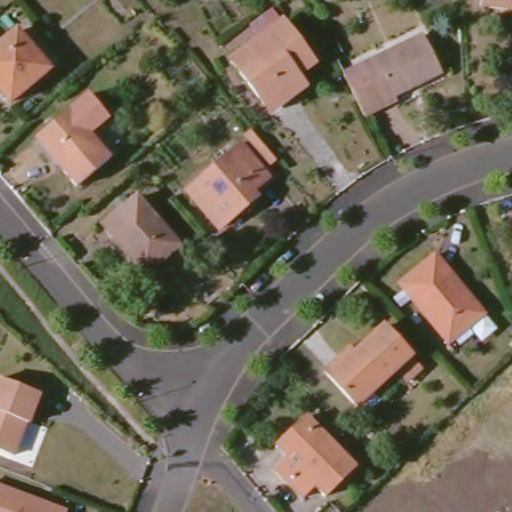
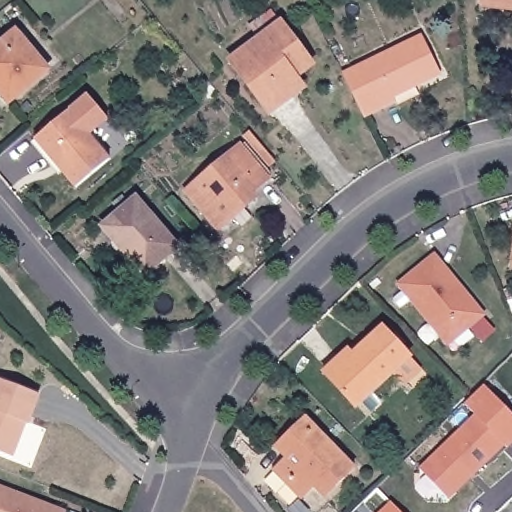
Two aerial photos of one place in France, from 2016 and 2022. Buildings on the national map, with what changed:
unchanged [(492,7),(475,5),(475,0),(512,0),(512,20),(492,17),(492,7)]
unchanged [(297,79),(292,74),(279,85),(285,92),(269,105),(234,65),(278,26),(312,66),(297,79)]
unchanged [(0,39),(9,31),(47,72),(10,105),(0,95),(0,39)]
unchanged [(392,103),(365,116),(343,73),(417,36),(435,71),(387,93),(392,103)]
unchanged [(83,96),(104,118),(86,135),(107,158),(77,187),(34,141),(65,113),(83,96)]
unchanged [(220,225),(189,189),(242,143),(269,174),(252,188),(256,193),(220,225)]
unchanged [(144,272),(103,225),(135,196),(176,243),(144,272)]
unchanged [(450,348),(397,289),(437,253),(469,288),(462,295),(484,318),(450,348)]
unchanged [(322,373),(355,340),(360,345),(380,326),(407,356),(355,407),(322,373)]
unchanged [(16,418),(12,427),(15,428),(7,452),(0,450),(0,379),(33,391),(22,420),(16,418)]
new [(469,407),(488,389),(512,413),(512,451),(509,448),(480,476),(476,472),(471,477),(473,479),(458,494),(445,494),(425,473),(480,419),(469,407)]
unchanged [(316,486),(300,500),(272,471),(286,458),(273,445),(300,416),(350,467),(324,493),(316,486)]
unchanged [(0,490),(59,511),(61,512),(0,512),(0,490)]
new [(390,501),(401,512),(380,512),(390,501)]

